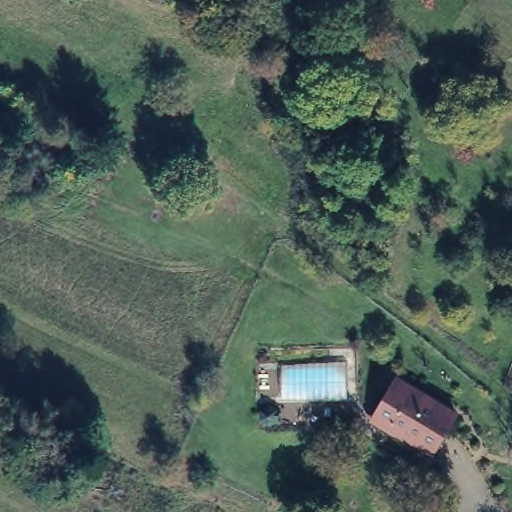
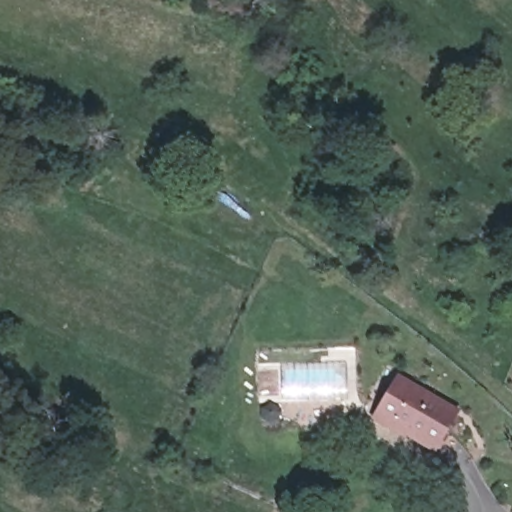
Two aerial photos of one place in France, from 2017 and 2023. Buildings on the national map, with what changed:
unchanged [(429,458),(399,443),(400,439),(370,422),(390,386),(450,419),(429,458)]

